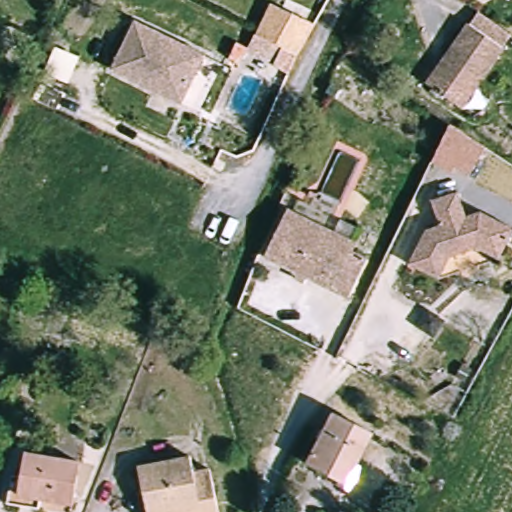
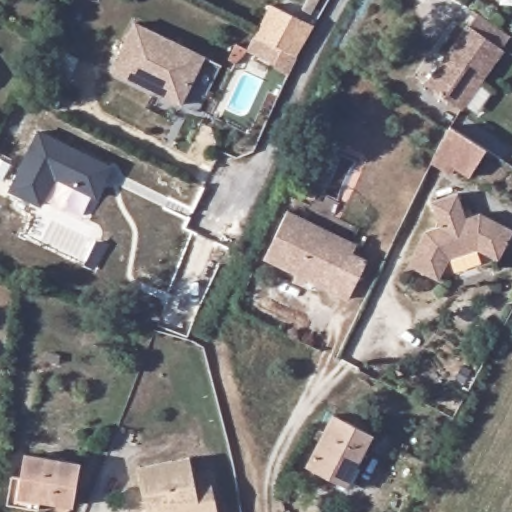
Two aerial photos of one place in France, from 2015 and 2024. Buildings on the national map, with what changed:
unchanged [(279,65),(248,50),(257,35),(259,36),(274,3),(315,23),(299,56),(292,71),(279,65)]
unchanged [(209,59),(187,107),(117,73),(139,24),(209,59)]
unchanged [(509,55),(468,117),(432,92),(473,31),(509,55)]
unchanged [(429,165),(449,125),(461,132),(481,146),(466,174),(452,167),(447,174),(442,171),(429,165)]
new [(112,167),(98,196),(56,177),(43,206),(13,192),(40,132),(112,167)]
unchanged [(482,246),(451,260),(439,281),(409,266),(429,231),(443,227),(430,201),(456,189),(468,214),(481,207),(512,225),(512,227),(503,244),(497,256),(482,246)]
unchanged [(361,246),(356,255),(369,262),(350,303),(263,262),(289,212),(361,246)]
unchanged [(369,435),(344,486),(307,467),(334,415),(369,435)]
unchanged [(9,504),(13,478),(25,480),(29,453),(80,461),(75,501),(45,496),(43,508),(9,504)]
unchanged [(197,458),(198,475),(216,472),(221,512),(149,512),(143,467),(197,458)]

